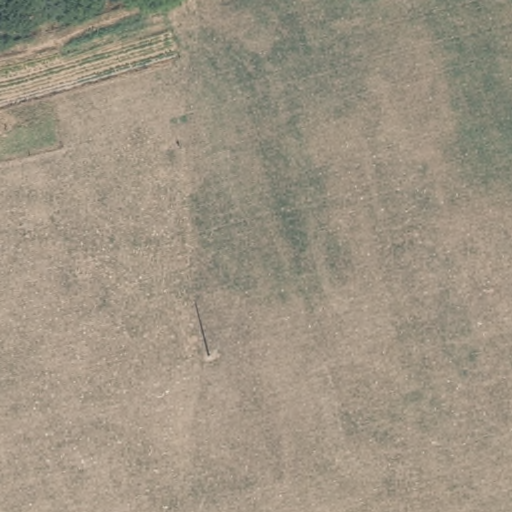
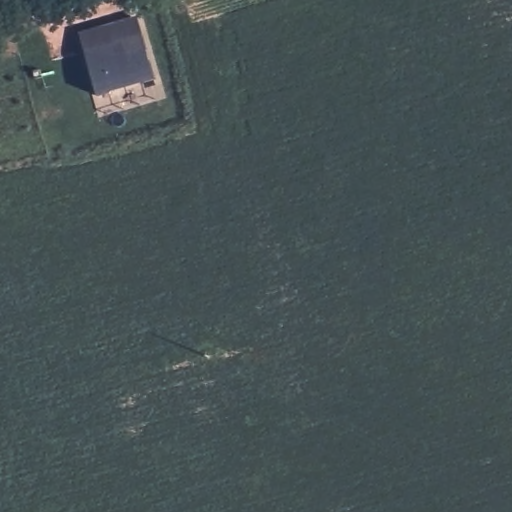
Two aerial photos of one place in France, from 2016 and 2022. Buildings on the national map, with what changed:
new [(136,16),(155,79),(100,95),(82,32),(136,16)]

